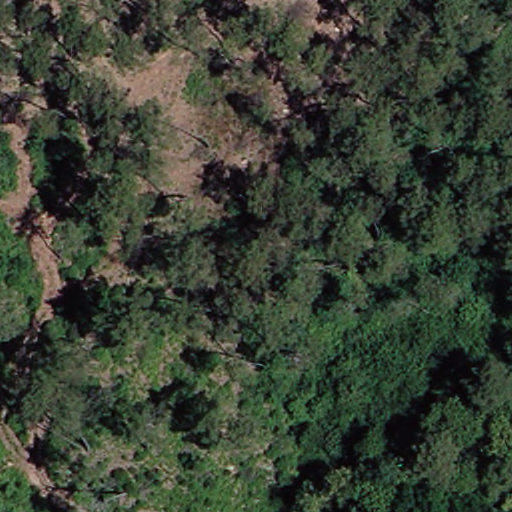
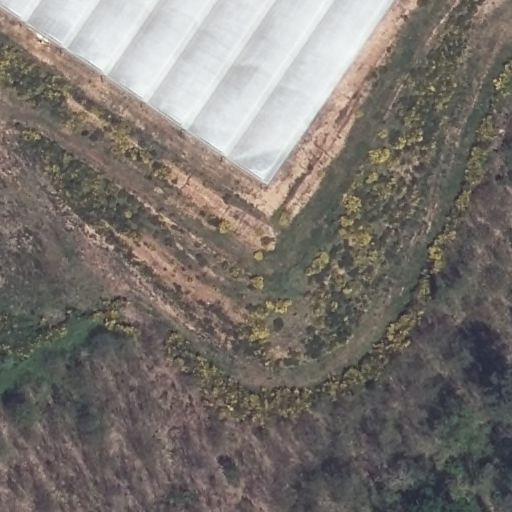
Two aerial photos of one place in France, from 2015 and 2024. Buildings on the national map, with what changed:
new [(257,191),(0,13),(0,0),(391,0),(257,191)]

